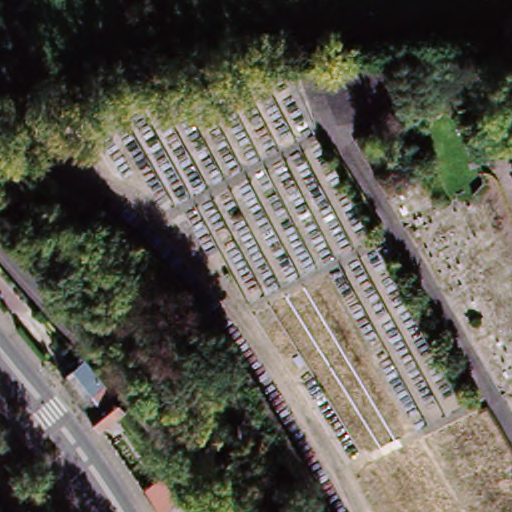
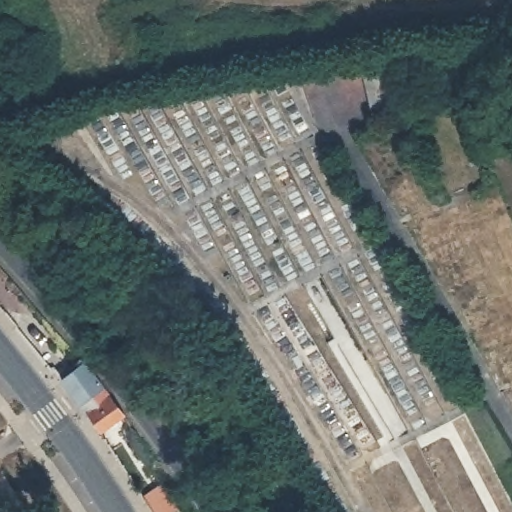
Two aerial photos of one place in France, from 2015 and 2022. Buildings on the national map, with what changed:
unchanged [(403,110),(372,117),(361,68),(392,61),(403,110)]
unchanged [(86,422),(81,416),(62,390),(65,389),(61,383),(82,369),(96,385),(105,398),(124,425),(99,442),(86,422)]
unchanged [(152,511),(145,501),(144,499),(168,484),(176,496),(184,508),(181,509),(180,510),(181,512),(152,512),(152,511)]

